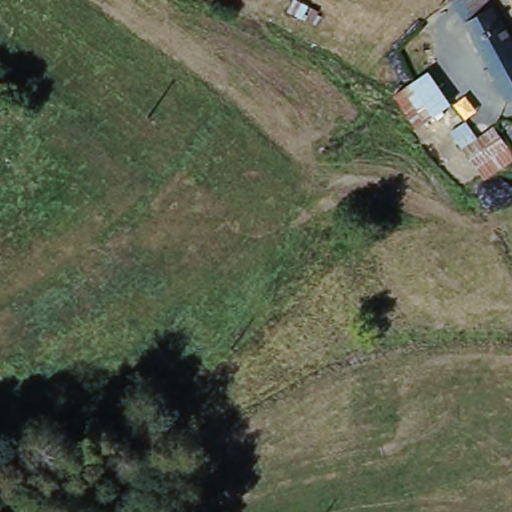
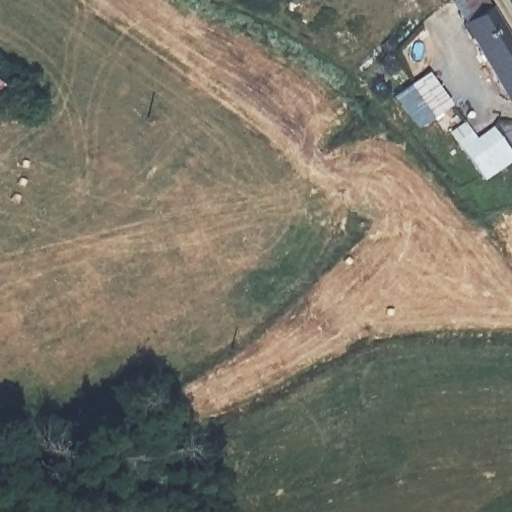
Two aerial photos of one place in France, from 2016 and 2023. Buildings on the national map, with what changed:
unchanged [(455,7),(465,0),(486,0),(503,27),(475,42),(455,7)]
unchanged [(509,102),(475,42),(503,27),(512,42),(512,101),(509,102)]
unchanged [(0,91),(0,75),(6,79),(0,91)]
unchanged [(403,119),(401,117),(391,103),(432,76),(454,110),(415,135),(403,119)]
unchanged [(512,160),(512,170),(487,187),(464,153),(452,136),(468,125),(478,142),(494,133),(512,160)]

